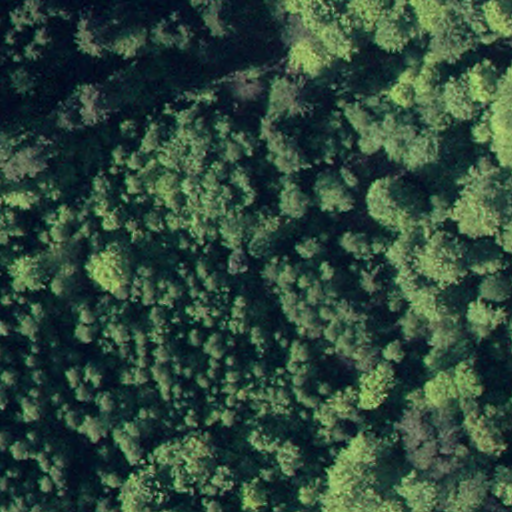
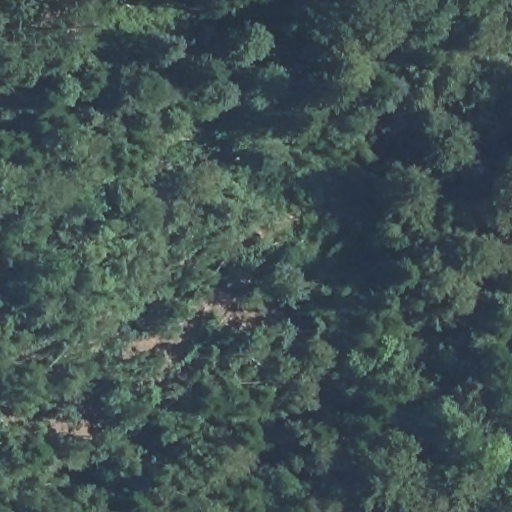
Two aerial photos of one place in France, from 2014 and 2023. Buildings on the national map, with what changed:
[]

